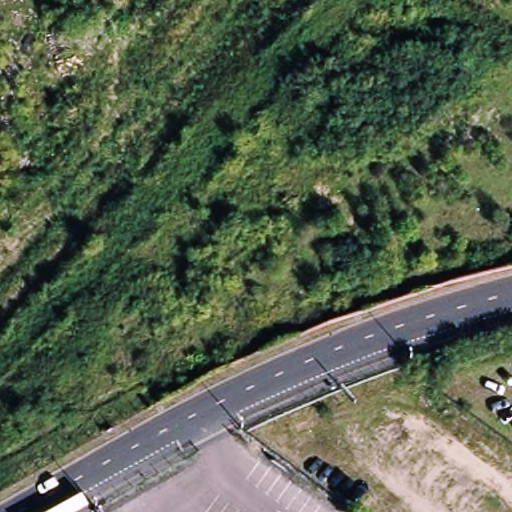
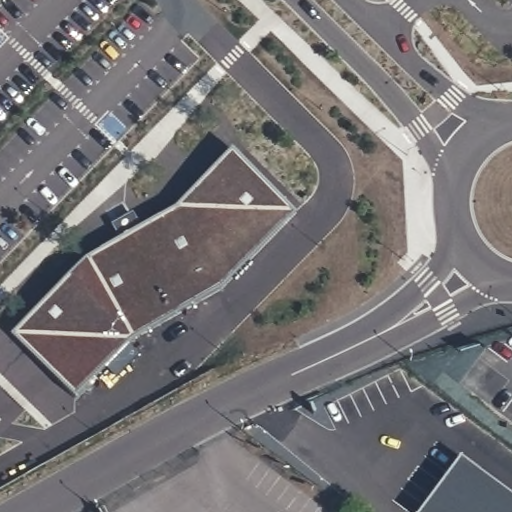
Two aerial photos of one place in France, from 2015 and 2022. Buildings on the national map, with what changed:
new [(75,393),(12,333),(68,276),(86,256),(175,205),(232,147),(295,210),(222,286),(131,337),(75,393)]

